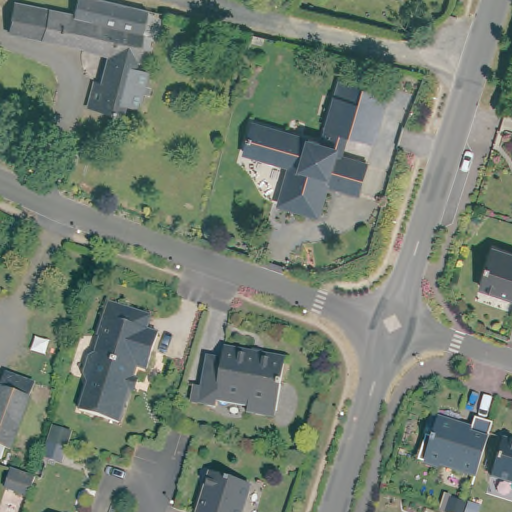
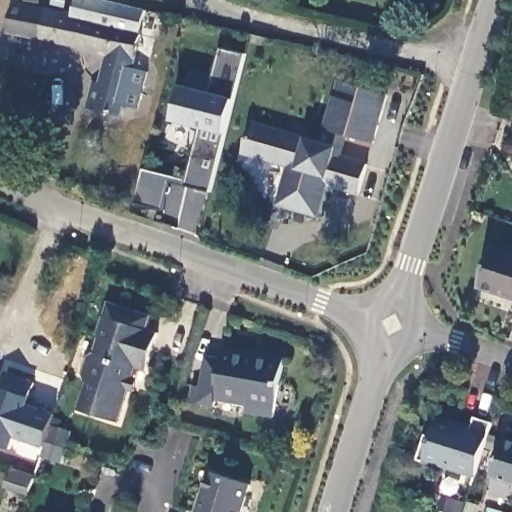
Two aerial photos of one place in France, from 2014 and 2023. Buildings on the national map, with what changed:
unchanged [(78,0),(87,0),(147,14),(141,37),(135,35),(87,24),(72,20),(78,0)]
unchanged [(91,115),(97,90),(105,91),(114,59),(81,50),(80,54),(40,44),(9,35),(12,24),(15,9),(47,17),(71,24),(72,20),(87,24),(135,35),(141,37),(131,75),(147,79),(138,114),(122,110),(119,121),(115,120),(91,115)]
new [(235,99),(226,135),(209,193),(171,182),(163,211),(134,204),(145,167),(185,179),(199,129),(174,122),(184,84),(211,91),(221,49),(245,55),(235,99)]
unchanged [(333,160),(335,153),(318,148),(338,79),(390,94),(376,145),(349,135),(338,162),(333,160)]
unchanged [(335,153),(333,160),(365,170),(356,199),(325,189),(315,220),(279,210),(289,170),(243,156),(252,128),(335,153)]
demolished [(104,140),(105,147),(100,151),(94,150),(91,146),(93,140),(100,138),(104,140)]
unchanged [(512,249),(512,294),(481,284),(493,244),(512,249)]
unchanged [(2,300),(0,304),(0,299),(2,300)]
unchanged [(134,393),(126,391),(115,423),(79,411),(87,383),(84,378),(91,356),(94,355),(100,336),(97,336),(104,317),(109,303),(150,316),(145,330),(157,334),(145,372),(133,368),(129,381),(136,384),(134,393)]
unchanged [(277,417),(250,411),(251,405),(221,400),(220,405),(196,400),(200,382),(206,383),(212,352),(214,342),(230,346),(289,358),(277,417)]
unchanged [(0,450),(0,404),(8,381),(35,390),(12,454),(0,450)]
unchanged [(493,426),(485,453),(477,480),(441,468),(440,470),(420,464),(428,439),(433,440),(440,421),(460,427),(459,431),(471,435),(476,421),(493,426)]
unchanged [(503,440),(512,442),(512,484),(493,478),(503,440)]
unchanged [(3,483),(8,465),(37,474),(31,492),(3,483)]
unchanged [(250,484),(242,512),(203,512),(215,473),(250,484)]

